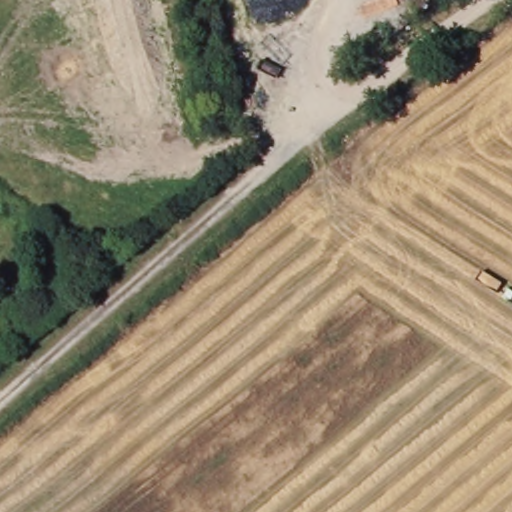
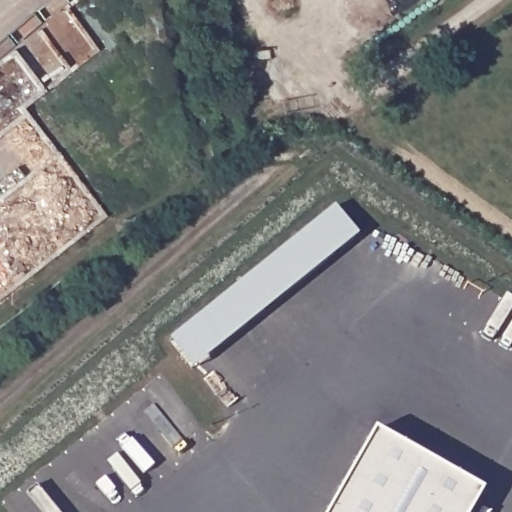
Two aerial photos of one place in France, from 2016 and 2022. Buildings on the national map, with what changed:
new [(333,210),(355,239),(190,370),(168,342),(333,210)]
new [(371,432),(479,493),(469,512),(326,512),(371,432)]

